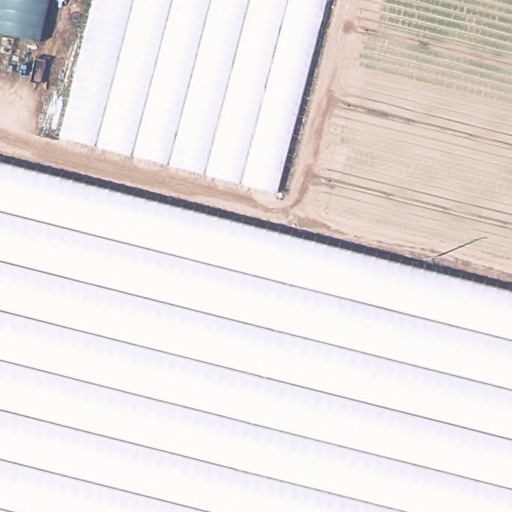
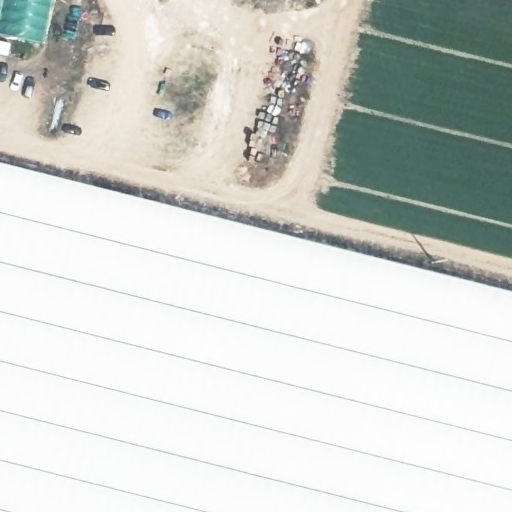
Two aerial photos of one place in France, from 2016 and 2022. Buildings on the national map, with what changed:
new [(0,34),(0,0),(49,0),(39,42),(0,34)]
demolished [(63,145),(98,3),(98,0),(335,0),(283,202),(63,145)]
unchanged [(0,157),(512,287),(512,512),(0,512),(0,157)]

